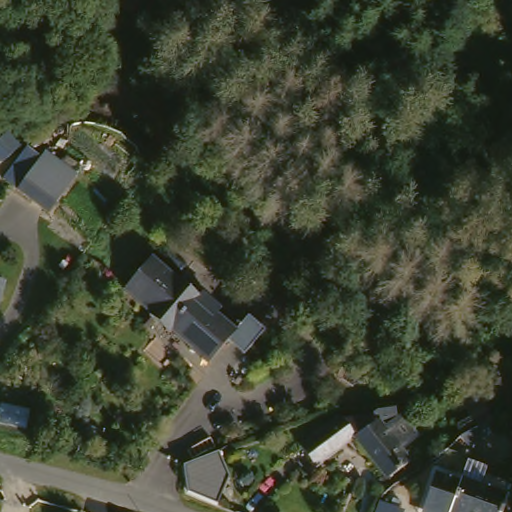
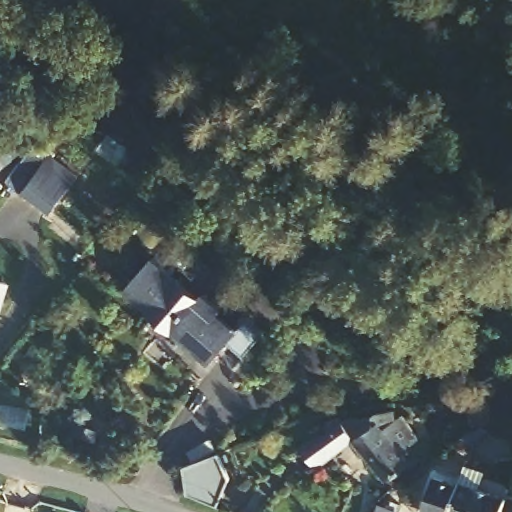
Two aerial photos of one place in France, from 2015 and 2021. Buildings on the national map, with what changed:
unchanged [(52,219),(30,186),(19,170),(46,152),(57,167),(79,201),(52,219)]
unchanged [(211,297),(215,294),(232,309),(228,313),(247,331),(260,315),(279,333),(260,357),(241,342),(222,365),(136,287),(164,255),(211,297)]
unchanged [(11,277),(2,302),(0,302),(0,273),(11,277)]
unchanged [(395,412),(404,406),(423,432),(409,442),(417,457),(393,476),(363,436),(322,466),(306,443),(350,411),(353,415),(387,404),(389,406),(395,412)]
unchanged [(188,491),(184,466),(220,453),(229,477),(217,502),(188,491)]
unchanged [(512,494),(512,503),(509,512),(457,512),(466,480),(512,494)]
unchanged [(405,511),(404,512),(376,512),(379,502),(405,511)]

